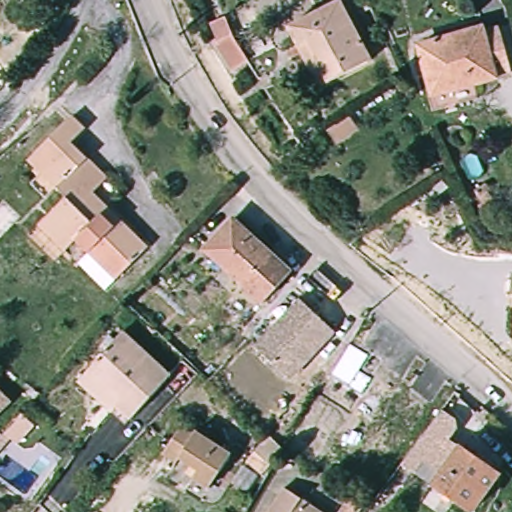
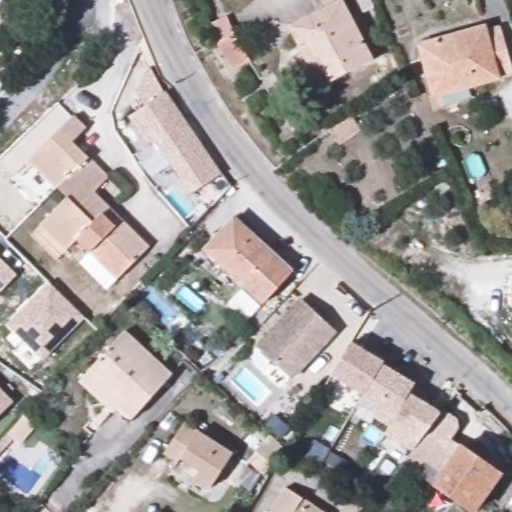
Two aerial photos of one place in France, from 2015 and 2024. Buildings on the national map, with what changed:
unchanged [(374,61),(328,92),(291,34),(338,5),(374,61)]
unchanged [(226,15),(252,65),(228,75),(208,26),(226,15)]
unchanged [(512,70),(512,72),(440,91),(423,37),(484,20),(487,29),(499,26),(512,70)]
new [(148,111),(138,98),(146,71),(164,94),(167,92),(227,171),(192,198),(181,183),(187,178),(159,142),(153,147),(134,122),(148,111)]
unchanged [(87,127),(75,140),(110,174),(96,189),(153,244),(110,290),(87,269),(95,257),(80,241),(55,263),(28,237),(68,193),(33,158),(72,114),(87,127)]
unchanged [(290,276),(260,304),(205,249),(235,221),(290,276)]
unchanged [(299,382),(258,356),(297,303),(333,327),(299,382)]
unchanged [(172,382),(132,425),(84,381),(124,338),(172,382)]
new [(435,417),(420,439),(412,451),(383,435),(388,427),(372,419),(375,415),(357,404),(362,395),(330,376),(351,342),(383,361),(382,365),(413,385),(409,392),(439,409),(435,417)]
unchanged [(0,392),(10,403),(0,411),(0,392)]
unchanged [(495,481),(475,512),(435,486),(442,474),(425,463),(417,475),(402,466),(435,417),(439,409),(454,419),(457,428),(450,439),(461,446),(488,464),(501,472),(495,481)]
unchanged [(31,419),(42,429),(25,448),(13,438),(31,419)]
unchanged [(208,500),(194,491),(202,477),(182,464),(177,470),(160,456),(182,428),(230,463),(208,500)]
unchanged [(238,461),(245,454),(260,439),(270,448),(274,452),(260,467),(253,474),(238,461)]
unchanged [(274,512),(287,494),(314,512),(274,512)]

